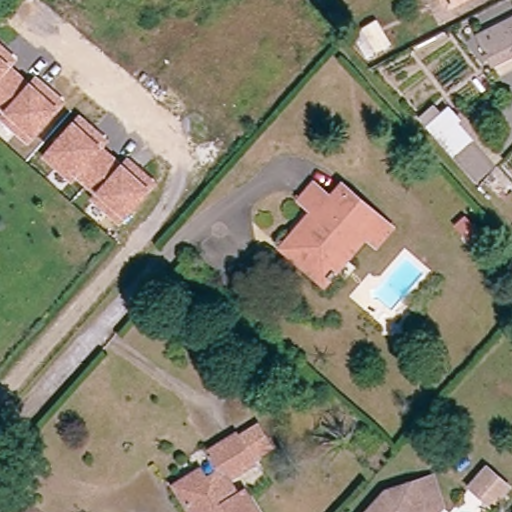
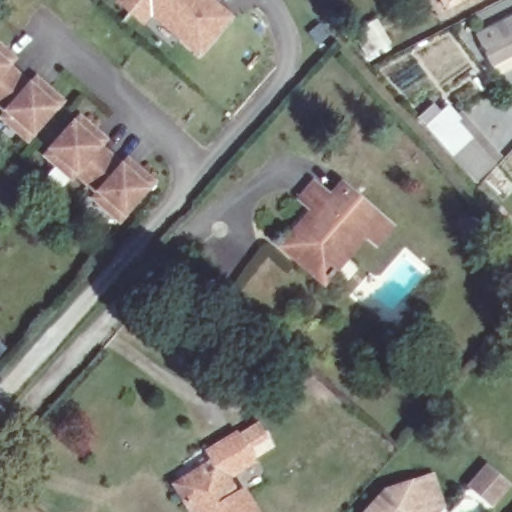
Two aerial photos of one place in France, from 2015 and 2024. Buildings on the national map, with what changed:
new [(198,57),(152,17),(144,26),(114,0),(216,0),(233,14),(198,57)]
unchanged [(438,8),(434,0),(455,0),(438,8)]
unchanged [(508,38),(483,51),(476,37),(512,19),(512,45),(508,38)]
unchanged [(0,56),(0,47),(4,51),(0,56)]
unchanged [(48,90),(64,103),(29,141),(5,120),(13,109),(0,98),(0,58),(42,95),(48,90)]
unchanged [(450,106),(457,112),(453,115),(495,161),(477,177),(429,125),(450,106)]
unchanged [(79,122),(94,134),(90,140),(134,177),(140,172),(155,184),(122,223),(95,200),(99,195),(77,174),(72,178),(47,158),(79,122)]
unchanged [(307,214),(294,203),(307,187),(324,201),(335,189),(382,229),(369,245),(358,237),(319,285),(291,261),(277,250),(307,214)]
unchanged [(452,222),(460,212),(476,225),(468,235),(457,226),(452,222)]
unchanged [(234,495),(244,512),(200,512),(178,512),(171,501),(174,495),(169,486),(188,473),(194,482),(207,475),(196,456),(224,438),(241,466),(215,483),(226,500),(234,495)]
unchanged [(394,487),(407,482),(422,478),(432,508),(421,512),(359,512),(376,492),(394,487)]

